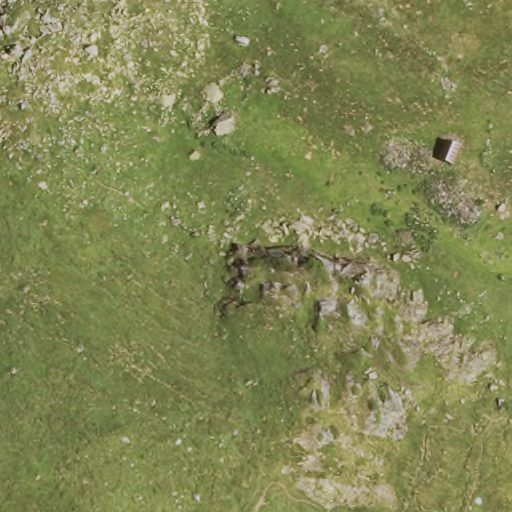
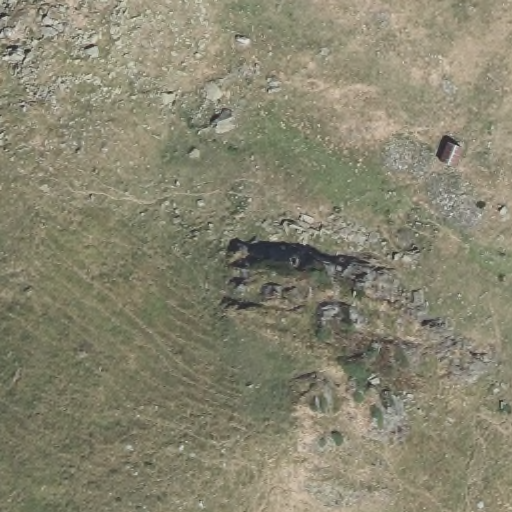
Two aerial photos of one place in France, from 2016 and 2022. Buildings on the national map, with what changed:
unchanged [(462,159),(459,168),(441,161),(447,141),(466,147),(462,159)]

